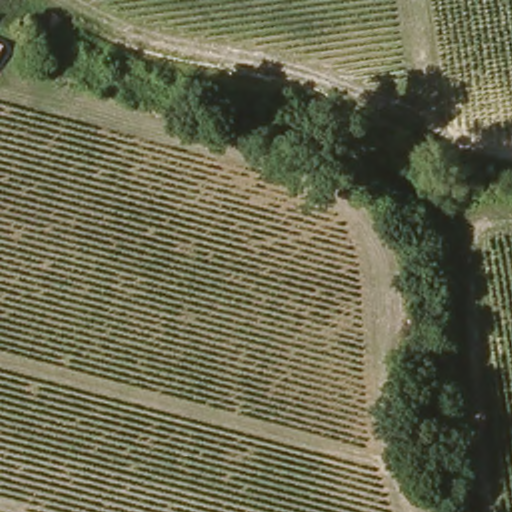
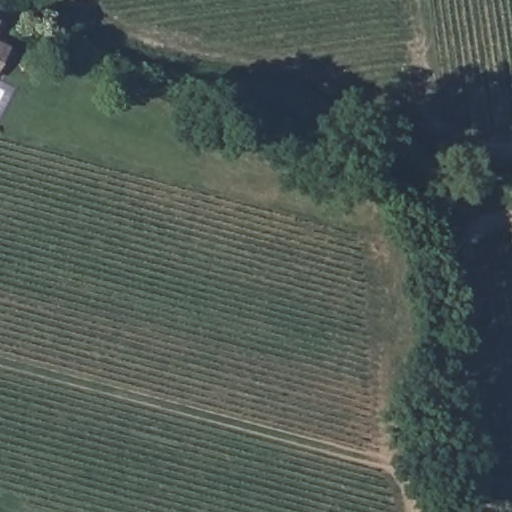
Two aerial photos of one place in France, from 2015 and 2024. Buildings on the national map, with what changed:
unchanged [(0,53),(0,41),(4,42),(0,53)]

